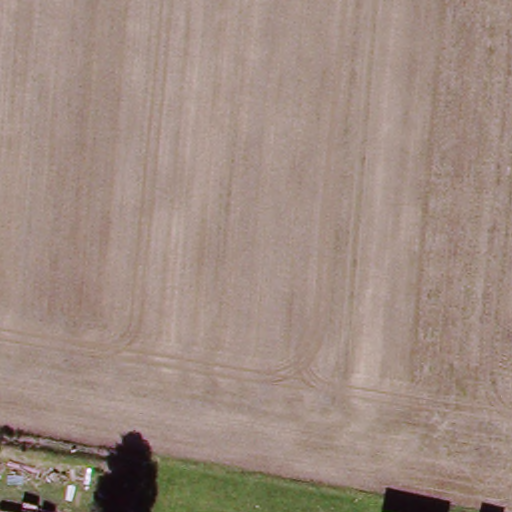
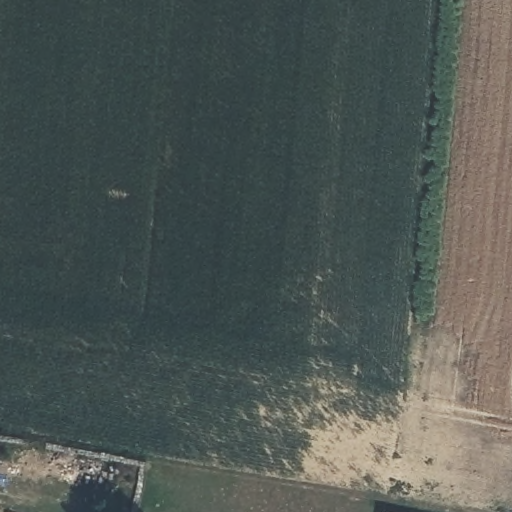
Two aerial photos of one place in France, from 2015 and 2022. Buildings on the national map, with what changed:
unchanged [(384,509),(396,512),(383,512),(384,509)]

